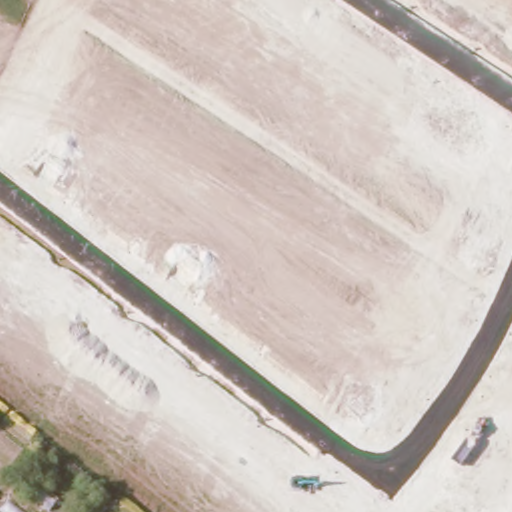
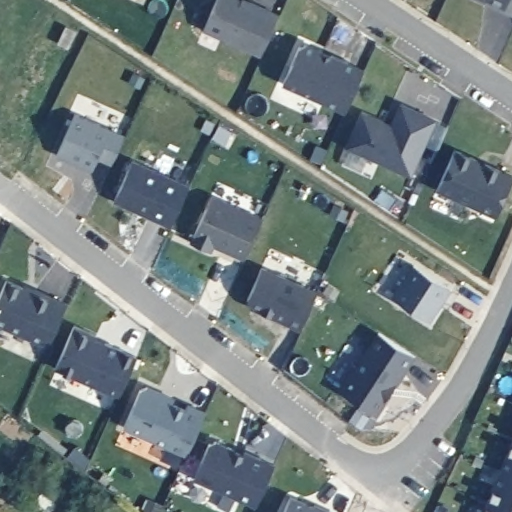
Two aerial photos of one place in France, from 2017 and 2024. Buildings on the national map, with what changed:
new [(260,53),(202,28),(215,0),(239,0),(248,4),(249,1),(277,14),(260,53)]
new [(493,26),(495,21),(460,5),(462,0),(512,0),(512,28),(510,33),(493,26)]
new [(344,109),(282,81),(298,45),(305,43),(362,69),(344,109)]
new [(432,118),(408,173),(345,144),(360,111),(382,120),(380,123),(388,126),(399,103),(432,118)]
new [(123,134),(110,161),(97,155),(92,168),(56,151),(74,111),(123,134)]
new [(511,176),(494,214),(435,188),(452,149),(511,176)]
new [(189,186),(171,226),(139,211),(140,210),(130,205),(129,207),(114,200),(132,161),(189,186)]
new [(261,216),(244,257),(212,243),(210,249),(190,240),(211,194),(261,216)]
new [(449,288),(427,320),(390,295),(412,263),(449,288)]
new [(299,327),(249,303),(247,295),(262,265),(315,291),(299,327)]
new [(5,280),(34,292),(35,289),(65,303),(47,345),(0,324),(0,291),(5,280)]
new [(95,334),(94,337),(135,356),(117,395),(54,366),(72,324),(95,334)]
new [(413,356),(391,388),(389,387),(384,394),(385,396),(374,414),(338,391),(377,332),(413,356)]
new [(129,392),(145,385),(157,391),(160,398),(184,408),(186,403),(204,411),(182,460),(112,428),(129,392)]
new [(512,512),(480,512),(512,433),(512,512)]
new [(272,464),(254,505),(189,476),(203,441),(214,440),(242,453),(242,450),(272,464)]
new [(284,493),(312,505),(312,502),(335,512),(274,512),(284,493)]

